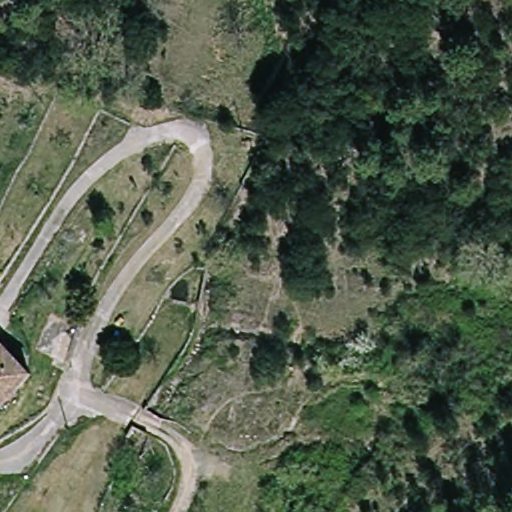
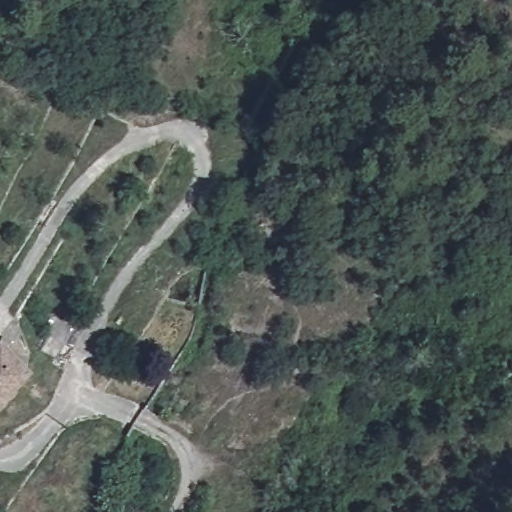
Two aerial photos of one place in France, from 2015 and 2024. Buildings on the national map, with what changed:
unchanged [(0,409),(0,350),(10,341),(39,376),(2,411),(0,409)]

